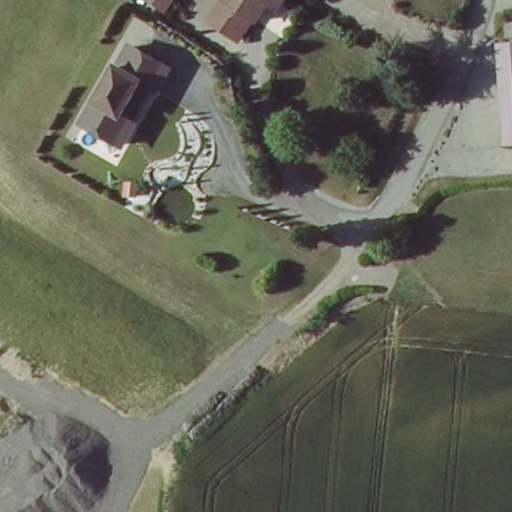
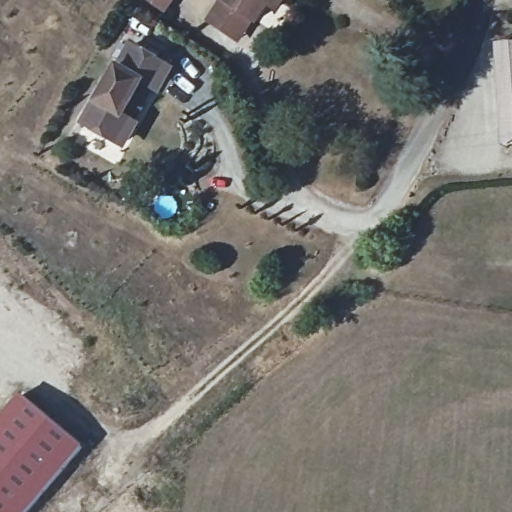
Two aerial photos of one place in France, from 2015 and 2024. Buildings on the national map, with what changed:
unchanged [(241,44),(205,20),(218,0),(228,0),(258,21),(241,44)]
unchanged [(258,21),(228,0),(284,0),(278,9),(270,3),(258,21)]
unchanged [(156,83),(145,76),(125,112),(133,118),(120,141),(83,119),(97,96),(100,98),(133,41),(168,61),(156,83)]
unchanged [(502,141),(499,45),(512,44),(512,140),(502,141)]
new [(87,443),(31,512),(0,512),(0,421),(25,391),(87,443)]

